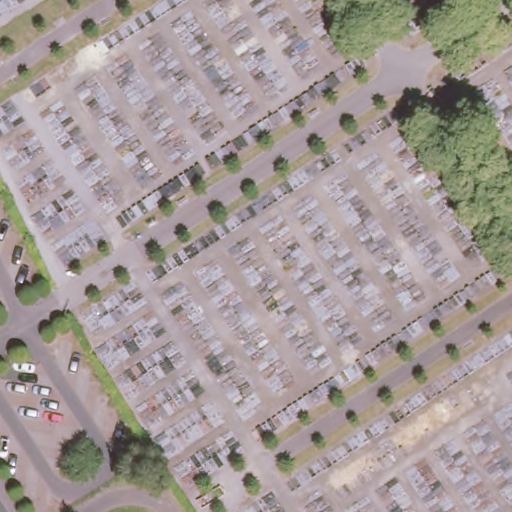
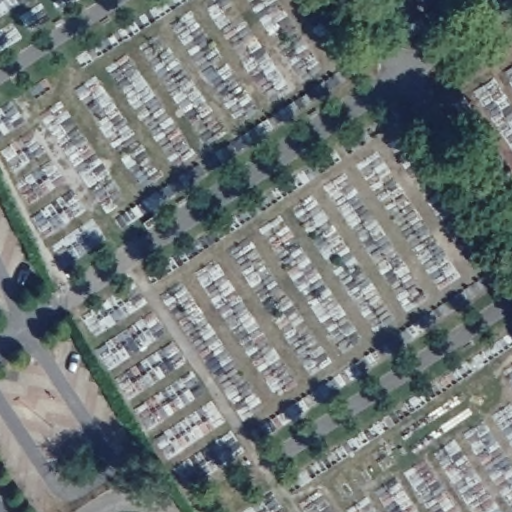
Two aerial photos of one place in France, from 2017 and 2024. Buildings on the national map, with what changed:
[]

